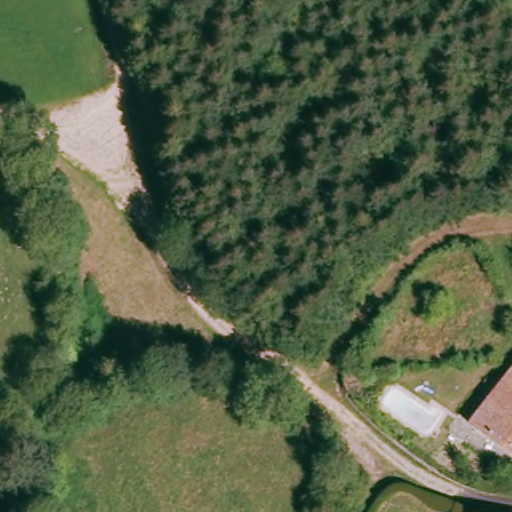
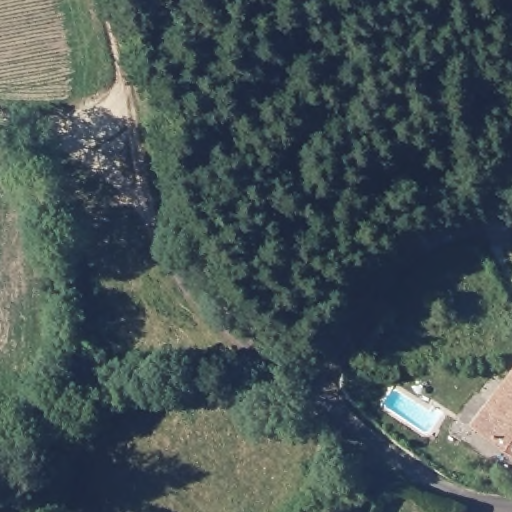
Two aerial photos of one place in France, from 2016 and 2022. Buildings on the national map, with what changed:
unchanged [(466,426),(512,367),(512,458),(490,443),(466,426)]

